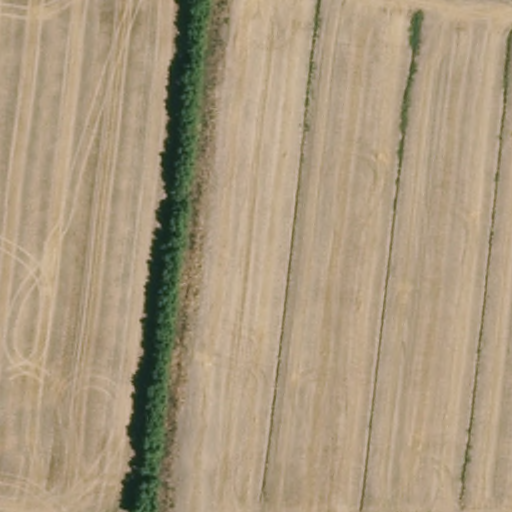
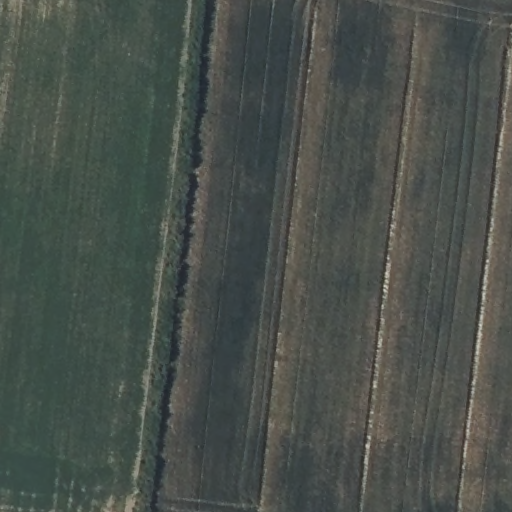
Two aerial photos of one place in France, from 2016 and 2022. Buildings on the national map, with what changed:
[]

